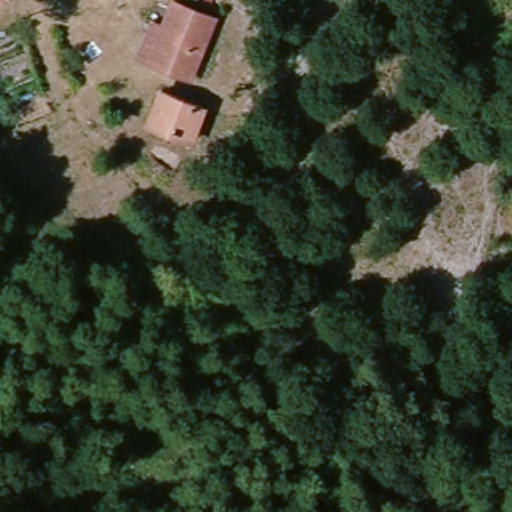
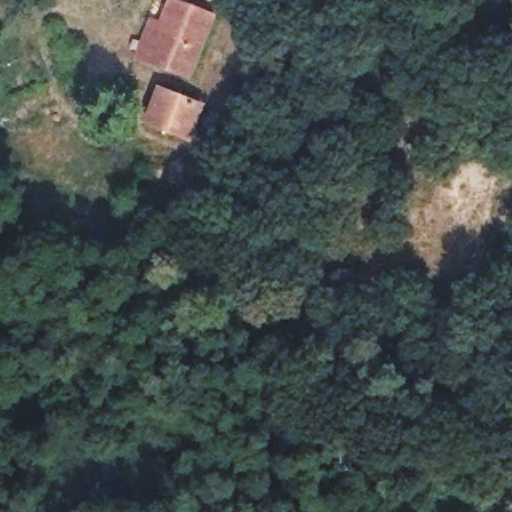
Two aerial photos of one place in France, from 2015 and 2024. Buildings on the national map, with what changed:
unchanged [(145,21),(160,27),(169,0),(176,0),(216,13),(190,83),(145,65),(129,58),(145,21)]
unchanged [(194,146),(141,127),(156,86),(209,104),(194,146)]

